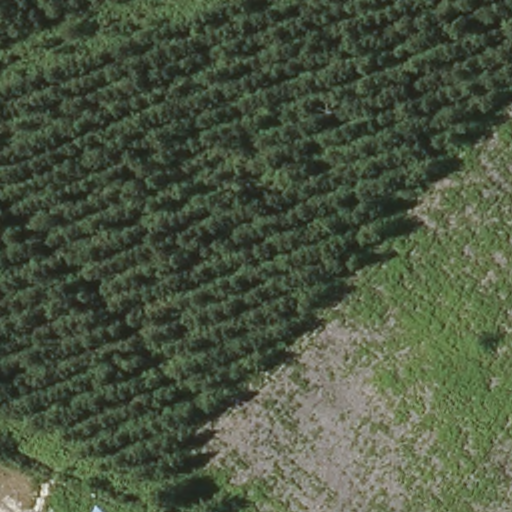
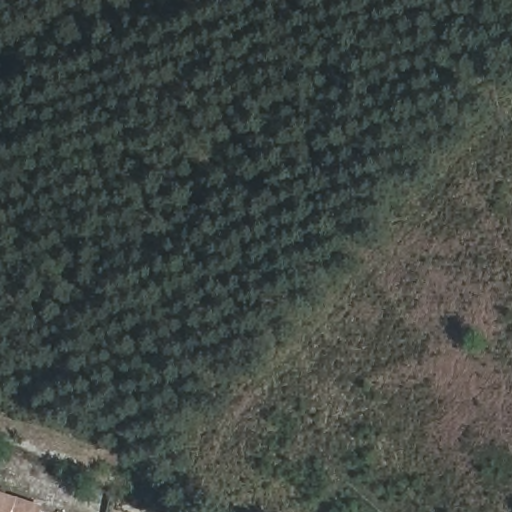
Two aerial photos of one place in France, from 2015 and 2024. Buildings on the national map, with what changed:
new [(0,491),(20,498),(44,506),(43,512),(0,512),(0,491)]

